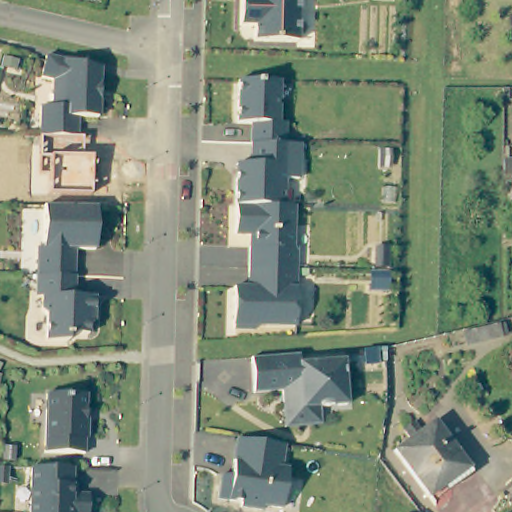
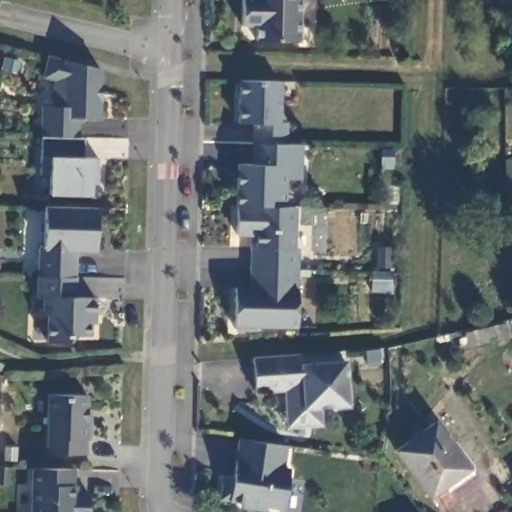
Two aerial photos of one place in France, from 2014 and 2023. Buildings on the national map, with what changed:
unchanged [(243,20),(243,0),(292,0),(291,21),(298,21),(297,42),(257,41),(258,21),(243,20)]
unchanged [(299,62),(298,106),(284,106),(285,79),(256,78),(256,91),(241,90),(242,60),(257,61),(257,41),(297,42),(304,42),(304,62),(299,62)]
unchanged [(99,94),(99,117),(79,117),(78,137),(41,136),(41,106),(54,106),(55,81),(42,77),(47,56),(100,69),(99,94)]
unchanged [(258,124),(240,123),(241,90),(256,91),(256,78),(285,79),(284,106),(283,122),(291,122),(290,144),(258,142),(258,124)]
unchanged [(80,157),(92,157),(97,157),(96,182),(90,184),(90,195),(48,194),(49,176),(39,175),(41,136),(78,137),(80,157)]
unchanged [(290,144),(305,144),(304,179),(289,179),(289,206),(271,206),(241,205),(242,164),(257,164),(258,142),(290,144)]
unchanged [(503,160),(512,160),(512,177),(503,177),(503,160)]
unchanged [(271,206),(289,206),(291,206),(299,207),(298,247),(302,248),(302,269),(255,267),(255,247),(260,247),(260,235),(240,234),(241,205),(271,206)]
unchanged [(38,247),(43,247),(44,206),(96,207),(95,250),(75,249),(74,277),(61,277),(37,276),(38,247)]
unchanged [(302,269),(300,326),(260,325),(260,329),(239,328),(239,325),(238,325),(239,287),(254,287),(255,267),(302,269)]
unchanged [(74,297),(94,297),(93,322),(88,322),(88,335),(75,335),(67,342),(46,342),(47,316),(42,311),(43,297),(36,297),(37,276),(61,277),(74,277),(74,297)]
unchanged [(504,323),(506,333),(471,342),(468,331),(504,323)]
unchanged [(286,427),(285,410),(284,390),(255,392),(252,357),(299,353),(300,363),(344,360),(347,405),(320,407),(321,424),(286,427)]
unchanged [(1,375),(0,380),(0,375),(1,375)]
unchanged [(45,452),(47,393),(87,395),(86,421),(88,421),(88,438),(85,438),(85,453),(45,452)]
unchanged [(434,497),(400,450),(417,438),(410,429),(419,422),(425,432),(439,422),(473,468),(434,497)]
unchanged [(285,445),(282,467),(289,468),(283,507),(264,505),(264,510),(242,507),(242,502),(219,498),(223,474),(238,477),(240,462),(235,462),(238,438),(285,445)]
unchanged [(0,480),(0,466),(7,466),(6,481),(0,480)]
unchanged [(76,495),(89,495),(89,512),(31,512),(32,467),(66,467),(72,467),(72,490),(76,495)]

